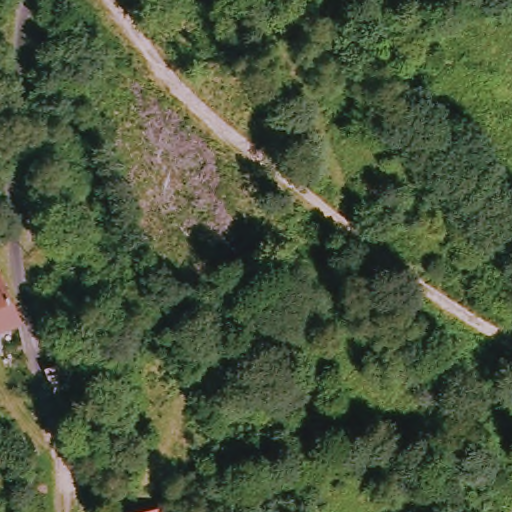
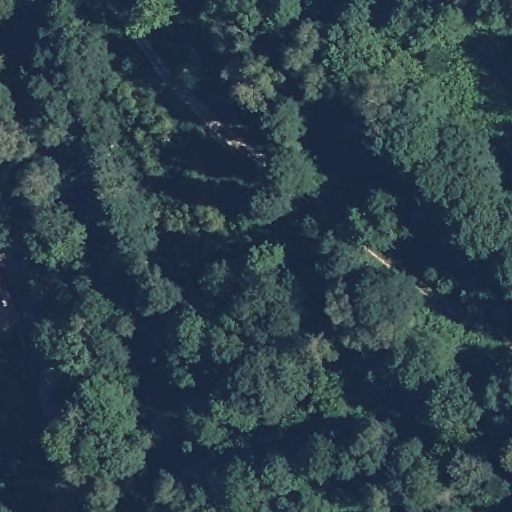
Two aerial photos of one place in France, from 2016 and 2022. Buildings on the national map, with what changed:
unchanged [(24,331),(0,340),(0,272),(1,272),(24,331)]
unchanged [(59,369),(94,353),(103,376),(66,391),(59,369)]
unchanged [(164,511),(164,512),(161,512),(164,511)]

